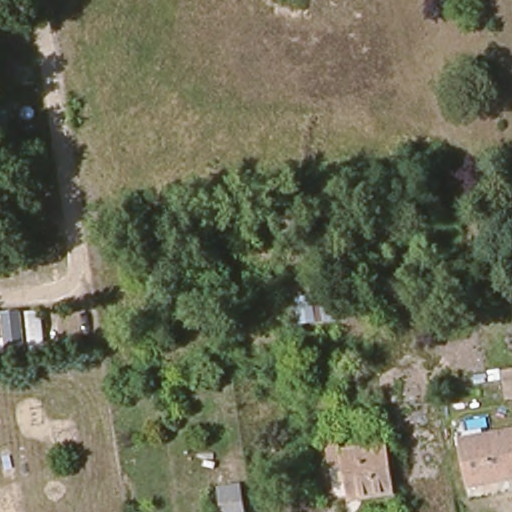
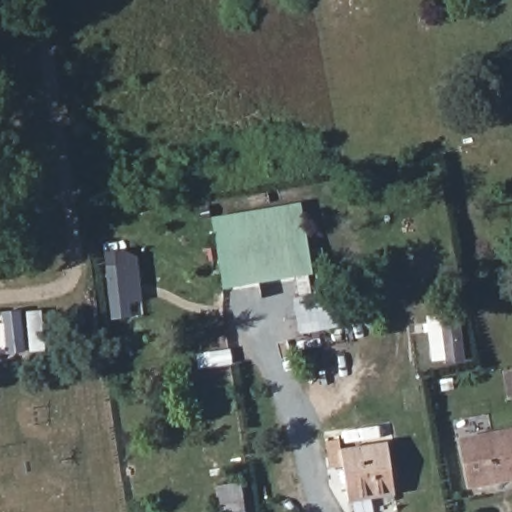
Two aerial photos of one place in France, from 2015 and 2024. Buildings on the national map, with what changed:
new [(301,203),(312,275),(223,290),(212,218),(301,203)]
new [(141,302),(132,303),(134,317),(113,320),(106,257),(136,254),(141,302)]
unchanged [(337,315),(318,319),(317,316),(302,319),(297,295),(332,288),(337,315)]
unchanged [(508,396),(504,368),(512,366),(512,395),(508,396)]
unchanged [(474,483),(465,439),(512,430),(512,476),(474,483)]
unchanged [(329,442),(344,439),(347,449),(389,440),(397,491),(353,499),(347,465),(333,467),(329,442)]
unchanged [(241,512),(221,512),(217,485),(237,484),(241,512)]

